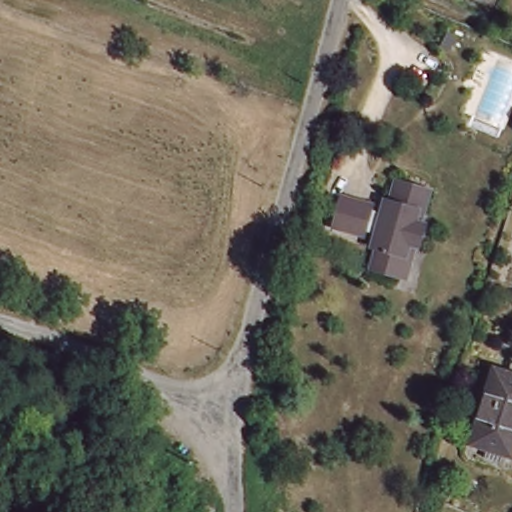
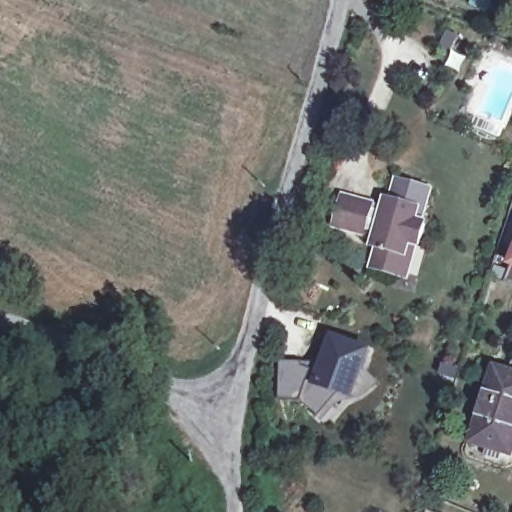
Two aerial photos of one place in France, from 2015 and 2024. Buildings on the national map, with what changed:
unchanged [(403,280),(377,272),(382,253),(378,251),(382,239),(371,236),(370,242),(339,232),(347,202),(378,211),(377,215),(388,218),(392,205),(396,206),(402,185),(435,194),(429,216),(424,215),(420,227),(430,230),(424,251),(422,250),(412,283),(403,280)]
new [(512,264),(512,286),(504,283),(512,264)]
new [(352,398),(340,394),(319,418),(300,402),(279,401),(280,362),(323,364),(332,339),(370,352),(363,369),(378,384),(352,398)]
unchanged [(492,453),(477,448),(500,376),(512,380),(512,459),(508,458),(505,468),(490,463),(492,453)]

